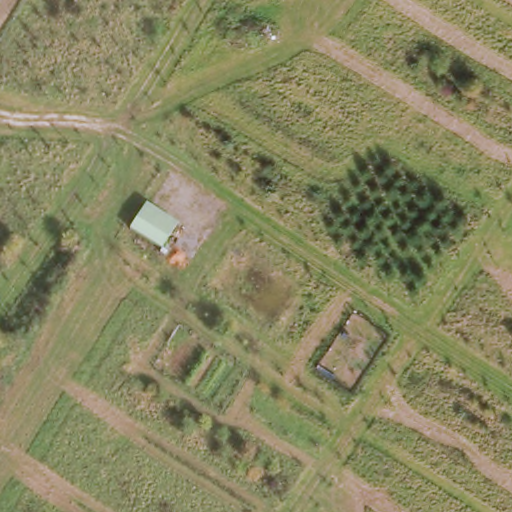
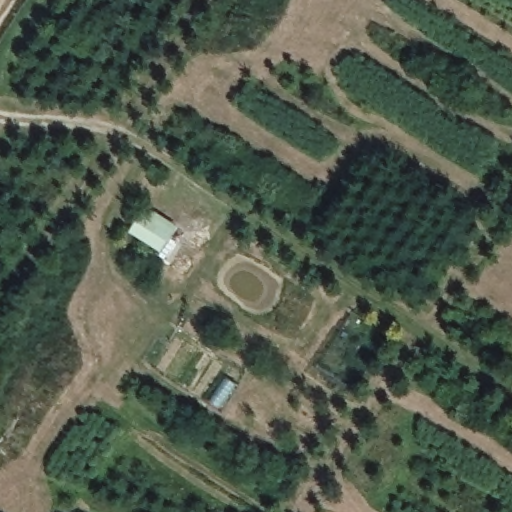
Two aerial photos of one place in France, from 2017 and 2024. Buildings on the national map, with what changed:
unchanged [(130,232),(146,206),(177,225),(160,250),(130,232)]

